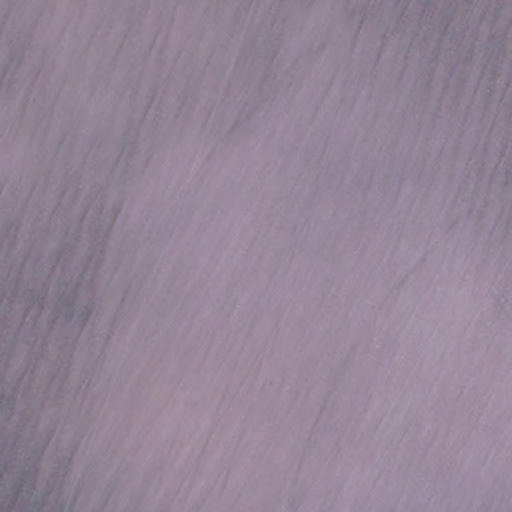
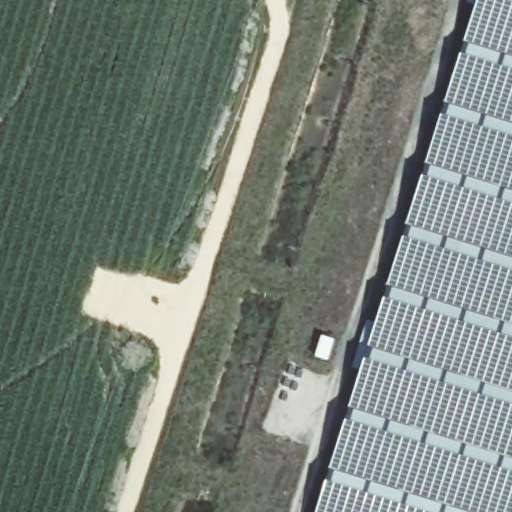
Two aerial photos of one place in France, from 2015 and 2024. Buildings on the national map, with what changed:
new [(512,512),(314,512),(476,0),(512,0),(512,512)]

